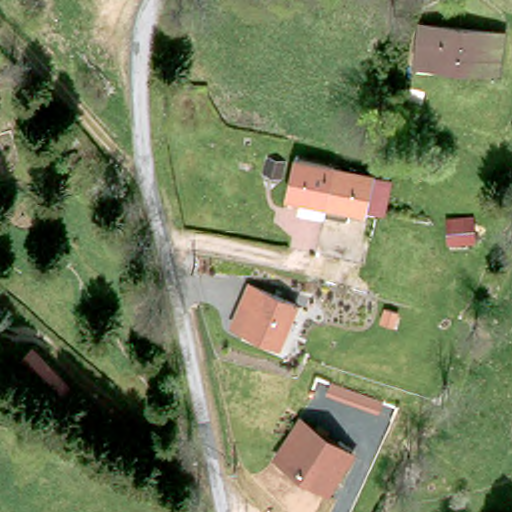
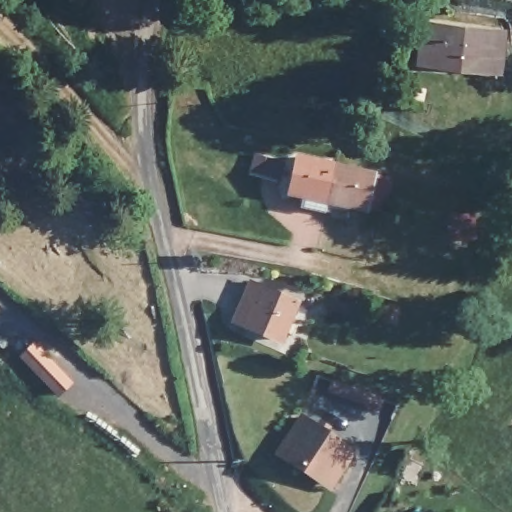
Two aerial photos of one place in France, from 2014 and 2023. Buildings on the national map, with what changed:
unchanged [(429,27),(466,31),(461,69),(425,65),(429,27)]
unchanged [(466,31),(506,36),(501,74),(461,69),(466,31)]
unchanged [(303,161),(338,168),(331,204),(296,196),(303,161)]
unchanged [(338,168),(376,176),(369,212),(331,204),(338,168)]
unchanged [(281,344),(241,329),(252,303),(243,299),(251,279),(300,301),(281,344)]
unchanged [(18,360),(29,346),(65,380),(53,393),(18,360)]
unchanged [(283,456),(285,453),(309,418),(353,448),(330,483),(328,487),(283,456)]

